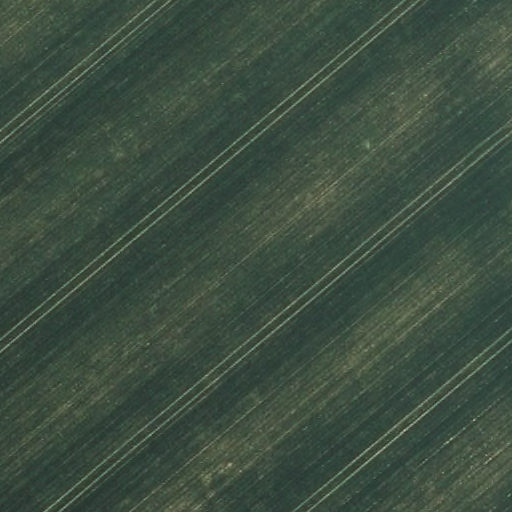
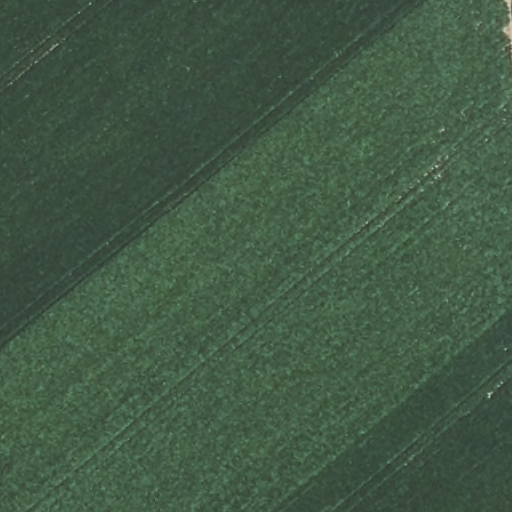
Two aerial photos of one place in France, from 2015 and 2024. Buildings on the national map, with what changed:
[]

